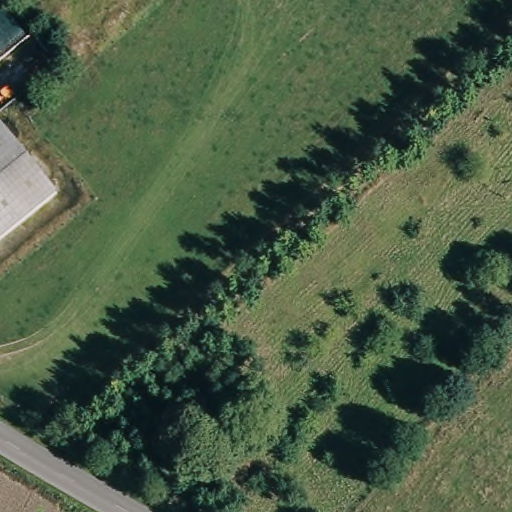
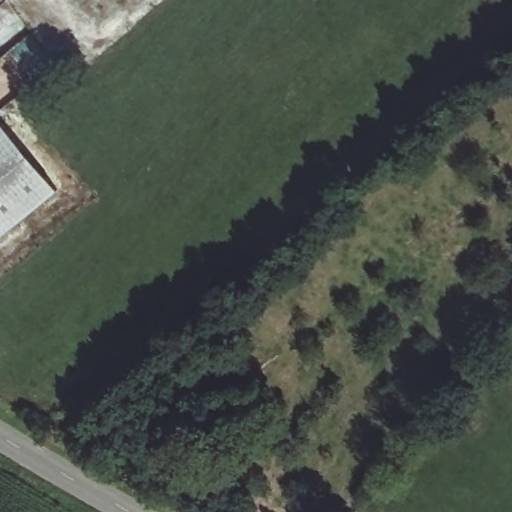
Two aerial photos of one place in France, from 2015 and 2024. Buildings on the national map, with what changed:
unchanged [(3,125),(56,197),(0,238),(0,127),(3,125)]

